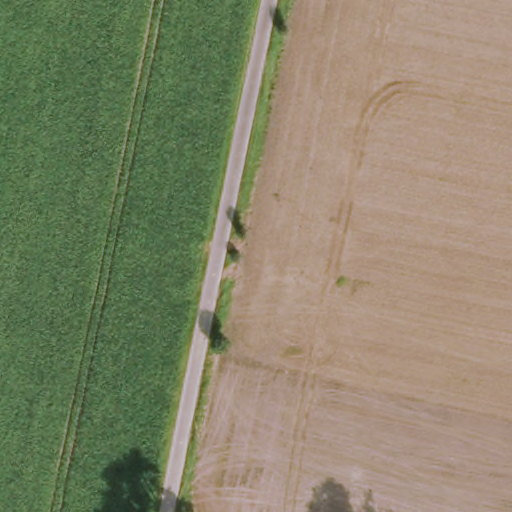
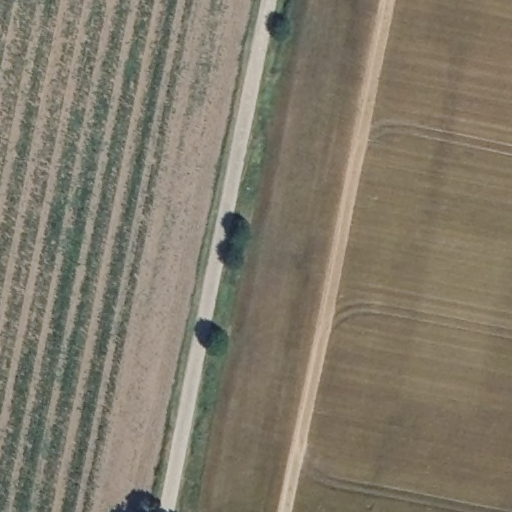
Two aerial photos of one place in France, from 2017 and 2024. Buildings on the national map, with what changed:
[]

